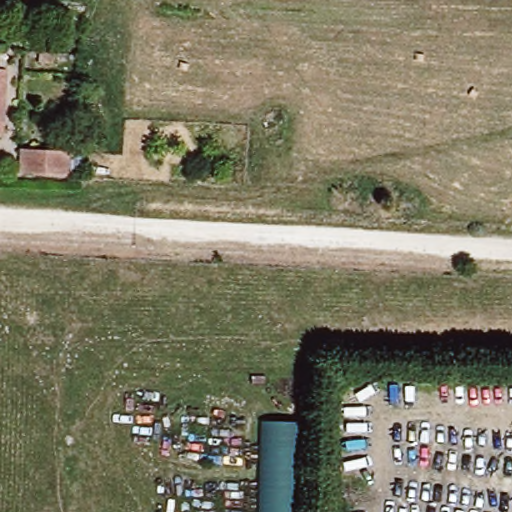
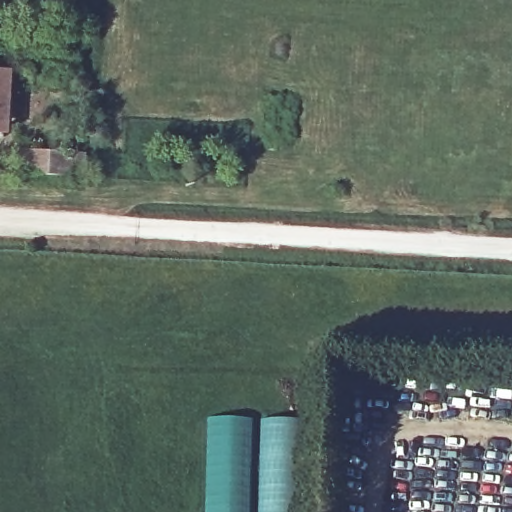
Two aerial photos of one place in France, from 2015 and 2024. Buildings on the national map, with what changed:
unchanged [(0,67),(2,67),(0,117),(0,67)]
unchanged [(29,175),(30,147),(75,150),(74,177),(29,175)]
new [(251,420),(249,512),(209,512),(211,419),(232,419),(251,420)]
unchanged [(260,420),(299,420),(298,512),(259,512),(260,420)]

